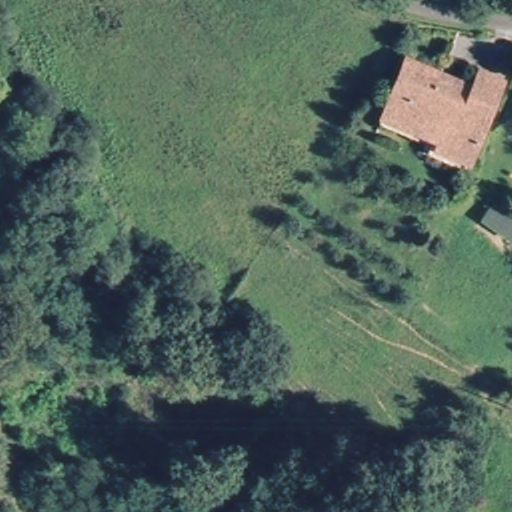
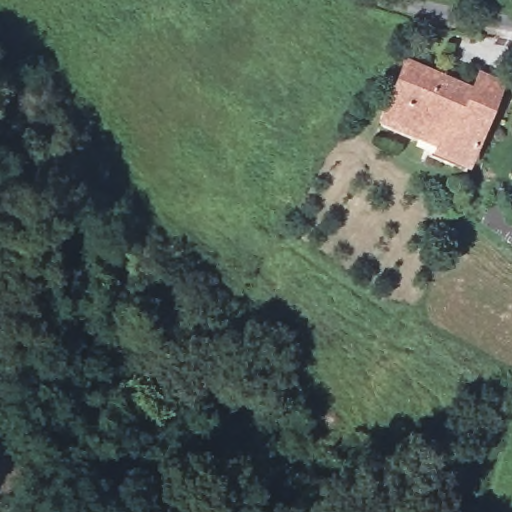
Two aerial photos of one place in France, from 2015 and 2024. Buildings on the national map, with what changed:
unchanged [(378,121),(390,93),(403,64),(414,69),(439,79),(433,95),(465,108),(468,101),(481,70),(503,79),(490,109),(469,159),(378,121)]

